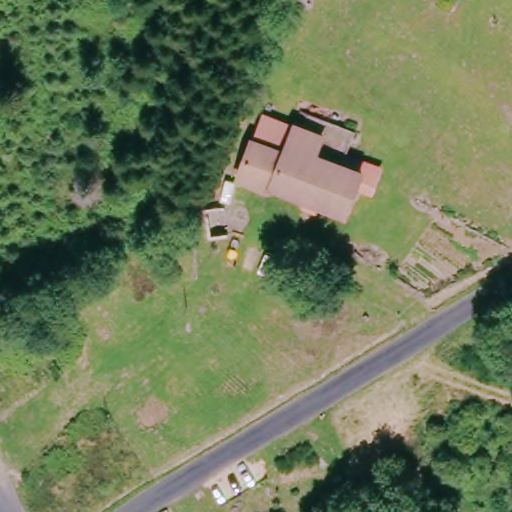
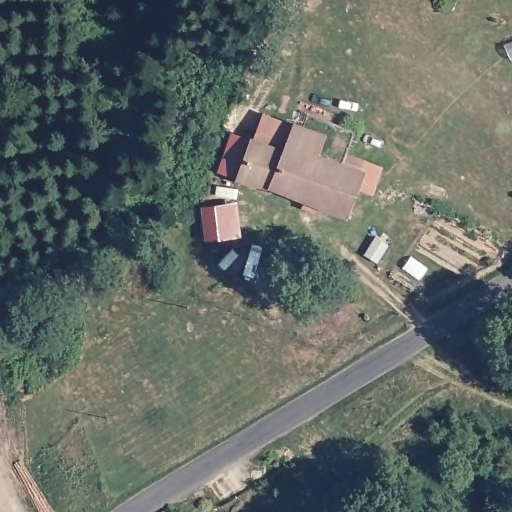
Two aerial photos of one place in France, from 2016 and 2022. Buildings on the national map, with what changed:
unchanged [(342,218),(271,190),(234,183),(248,138),(251,139),(262,113),(304,131),(306,128),(333,141),(323,166),(334,172),(339,165),(354,172),(351,182),(354,183),(342,218)]

